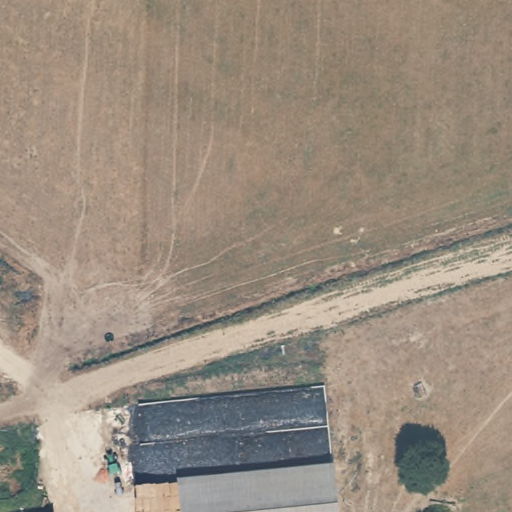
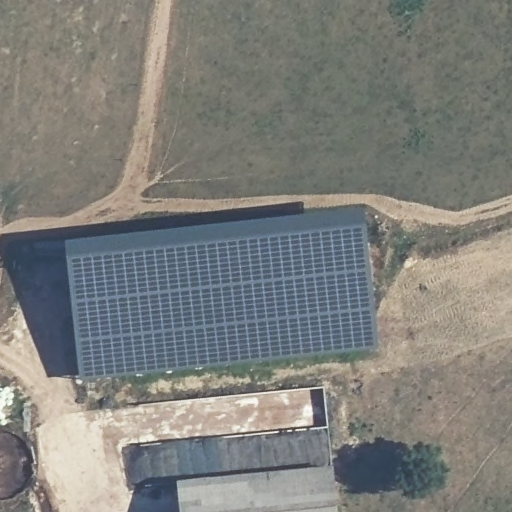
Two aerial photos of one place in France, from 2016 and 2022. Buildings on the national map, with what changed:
new [(78,380),(64,241),(363,208),(376,348),(78,380)]
unchanged [(332,467),(337,512),(179,512),(177,481),(332,467)]

